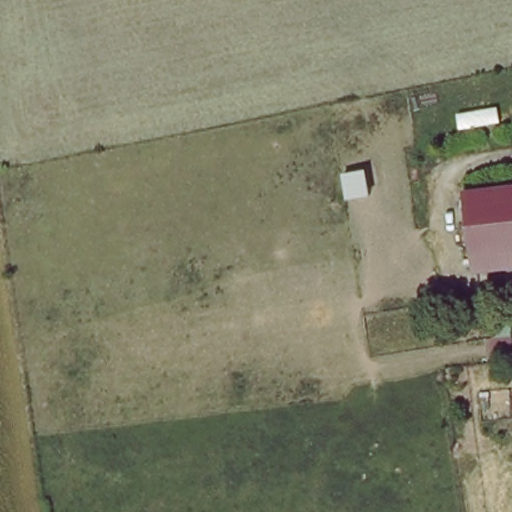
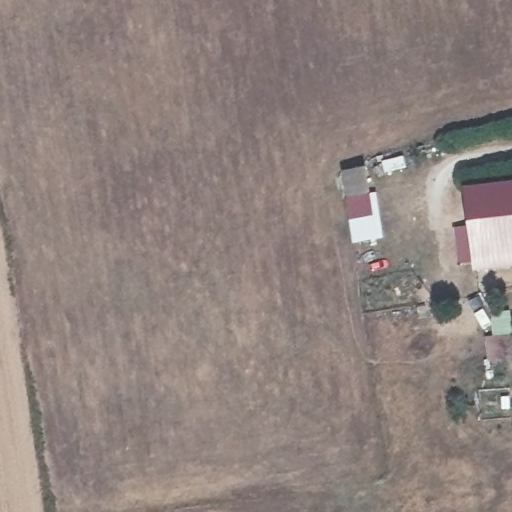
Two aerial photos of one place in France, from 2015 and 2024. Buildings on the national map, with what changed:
unchanged [(471,254),(463,190),(512,183),(512,249),(471,254)]

